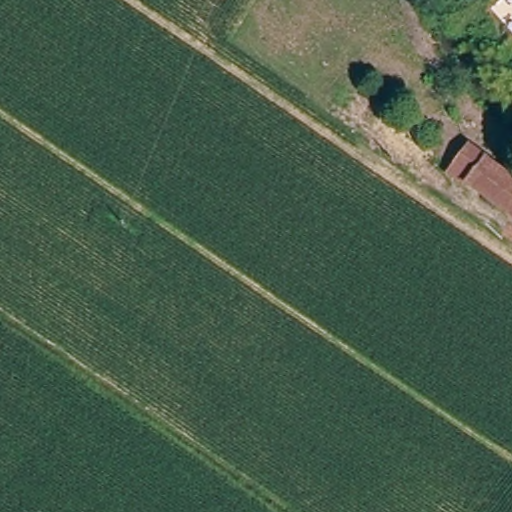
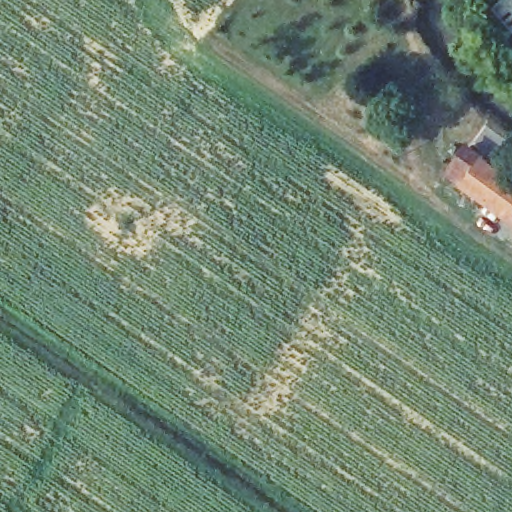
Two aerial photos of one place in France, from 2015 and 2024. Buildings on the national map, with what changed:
unchanged [(512,215),(453,171),(472,146),(512,176),(512,215)]

